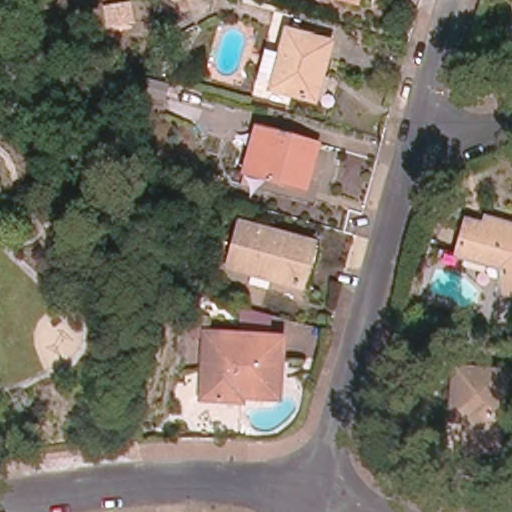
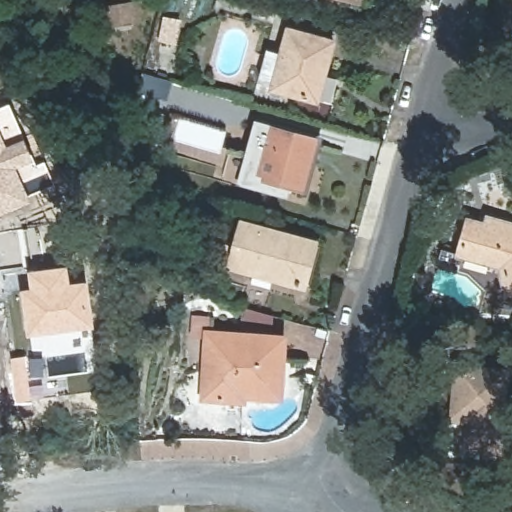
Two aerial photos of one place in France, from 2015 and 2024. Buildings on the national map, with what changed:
unchanged [(176,34),(161,32),(163,17),(179,19),(176,34)]
unchanged [(325,69),(320,67),(312,96),(271,85),(287,24),(333,37),(325,69)]
unchanged [(167,103),(137,95),(142,76),(171,84),(167,103)]
new [(27,138),(26,139),(32,153),(33,152),(37,164),(46,160),(57,185),(30,197),(32,202),(0,216),(0,107),(11,102),(27,138)]
unchanged [(302,186),(247,170),(259,124),(315,140),(302,186)]
unchanged [(257,207),(237,200),(238,195),(259,201),(257,207)]
unchanged [(502,277),(509,276),(507,261),(492,257),(491,265),(458,256),(468,219),(492,225),(494,219),(512,224),(512,293),(505,294),(502,277)]
unchanged [(302,287),(231,267),(242,225),(313,244),(302,287)]
new [(72,282),(89,279),(99,328),(30,334),(22,290),(31,289),(29,272),(69,264),(72,282)]
unchanged [(280,398),(244,396),(243,401),(204,398),(207,332),(283,338),(280,398)]
unchanged [(500,454),(471,450),(474,415),(457,414),(462,362),(507,366),(500,454)]

